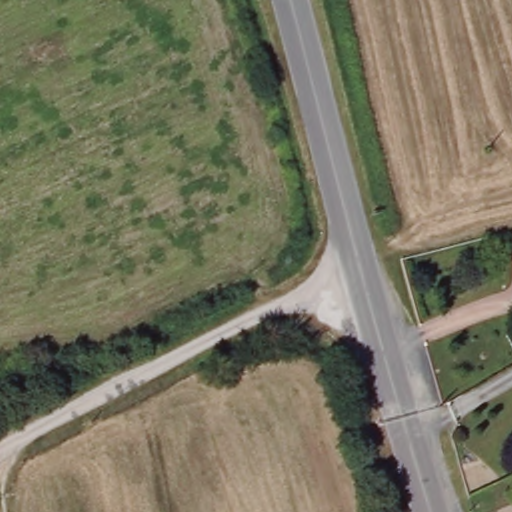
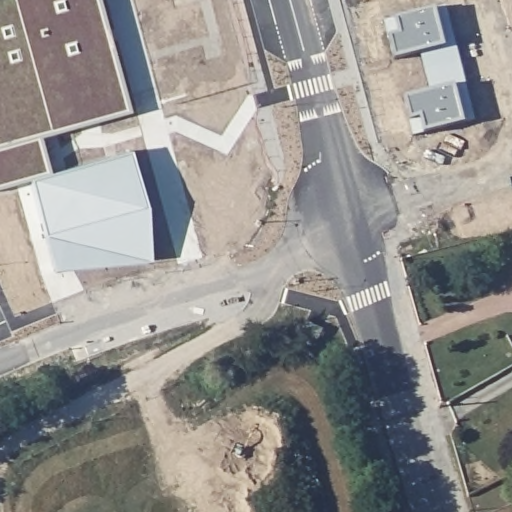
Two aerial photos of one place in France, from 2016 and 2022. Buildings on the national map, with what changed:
new [(100,0),(132,115),(43,138),(51,174),(135,155),(150,266),(57,272),(37,182),(0,187),(0,0),(100,0)]

